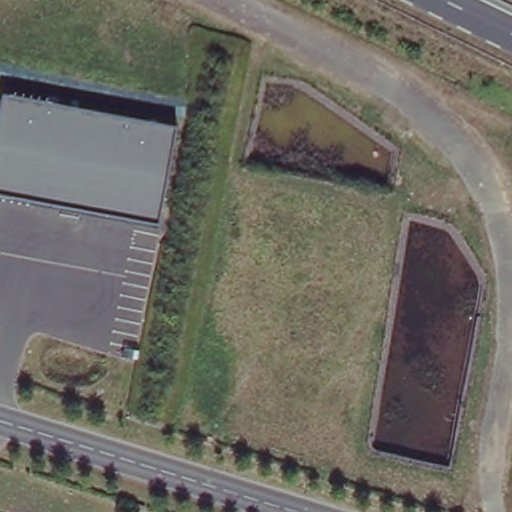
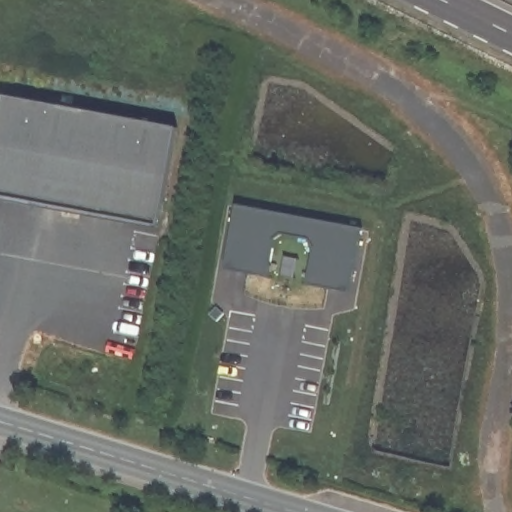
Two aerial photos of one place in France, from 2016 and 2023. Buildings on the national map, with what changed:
unchanged [(176,127),(158,224),(0,195),(0,106),(2,94),(176,127)]
new [(235,211),(363,220),(362,283),(317,281),(316,244),(310,236),(282,236),(276,244),(277,279),(232,277),(235,211)]

